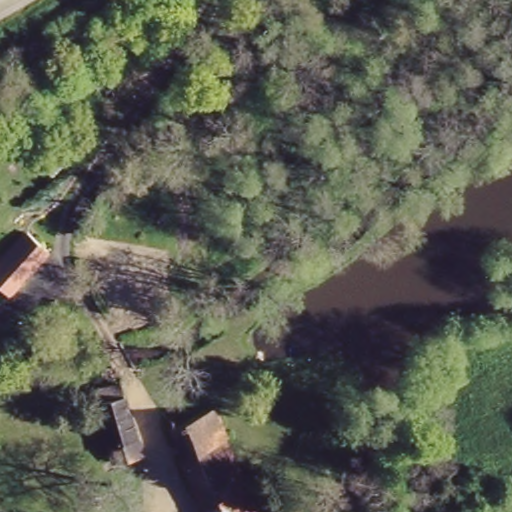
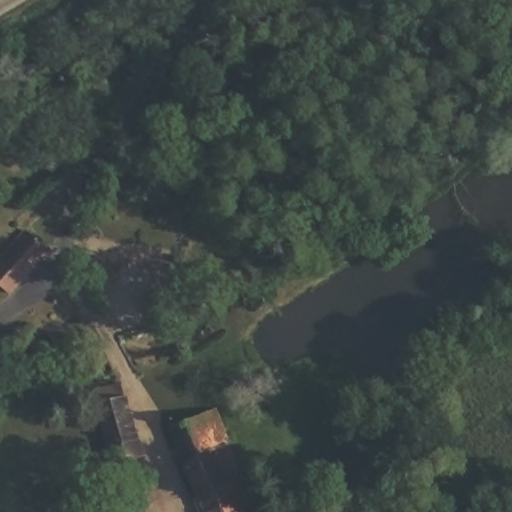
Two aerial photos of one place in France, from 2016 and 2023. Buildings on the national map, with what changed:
unchanged [(2,292),(0,291),(0,254),(20,232),(41,251),(2,292)]
unchanged [(113,379),(139,450),(108,459),(104,459),(88,396),(92,395),(90,386),(113,379)]
unchanged [(171,428),(216,411),(227,441),(224,443),(236,476),(248,472),(268,512),(203,512),(198,501),(171,428)]

